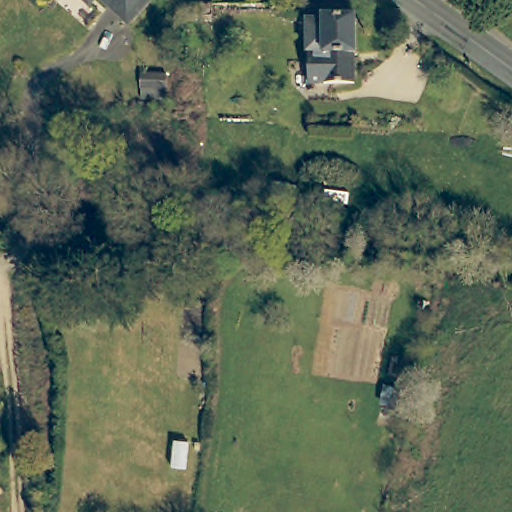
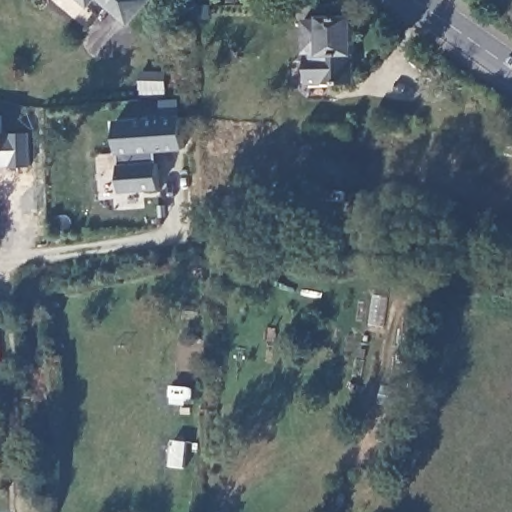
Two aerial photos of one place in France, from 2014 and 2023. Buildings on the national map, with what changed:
unchanged [(105,0),(153,0),(131,23),(105,0)]
unchanged [(191,4),(212,4),(212,17),(190,17),(191,4)]
unchanged [(360,20),(360,55),(356,56),(356,83),(312,82),(313,54),(310,55),(310,21),(305,22),(305,9),(322,9),(328,9),(348,8),(347,19),(360,20)]
new [(167,75),(165,99),(139,97),(141,74),(167,75)]
new [(181,116),(183,150),(156,152),(156,163),(158,191),(121,192),(120,154),(117,120),(181,116)]
unchanged [(302,186),(296,209),(265,200),(272,180),(302,186)]
unchanged [(170,440),(187,440),(182,481),(166,478),(170,440)]

